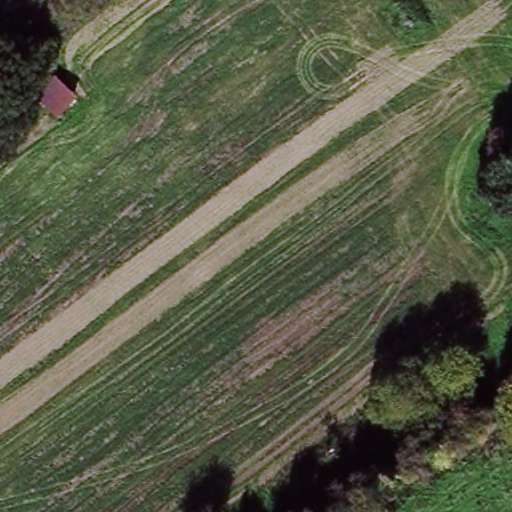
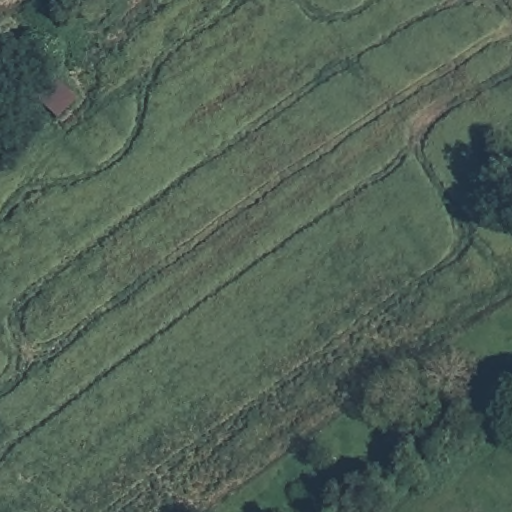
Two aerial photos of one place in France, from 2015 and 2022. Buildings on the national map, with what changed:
unchanged [(50,67),(78,97),(56,117),(30,87),(50,67)]

